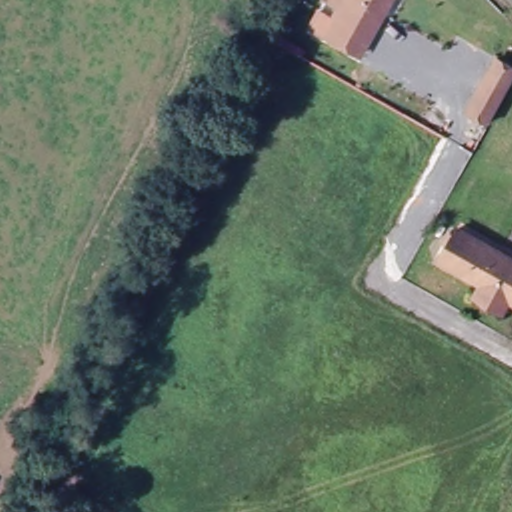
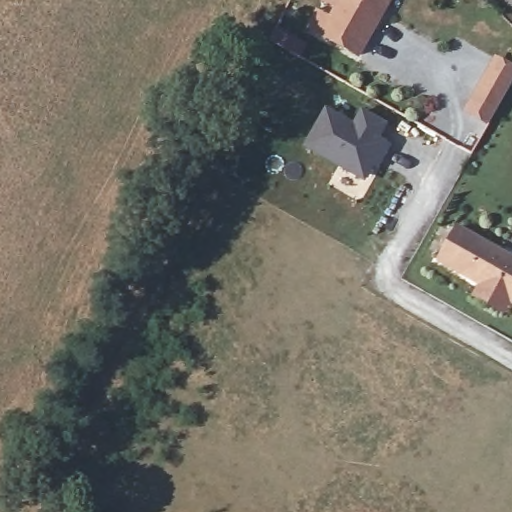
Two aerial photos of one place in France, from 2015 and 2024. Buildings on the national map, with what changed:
unchanged [(320,43),(337,15),(324,7),(328,0),(393,0),(356,64),(320,43)]
unchanged [(512,70),(512,86),(492,121),(489,126),(467,114),(498,62),(512,70)]
new [(329,113),(357,129),(364,115),(388,127),(380,142),(392,149),(383,164),(379,162),(369,179),(362,181),(308,150),(329,113)]
unchanged [(463,229),(512,258),(512,302),(444,263),(463,229)]

